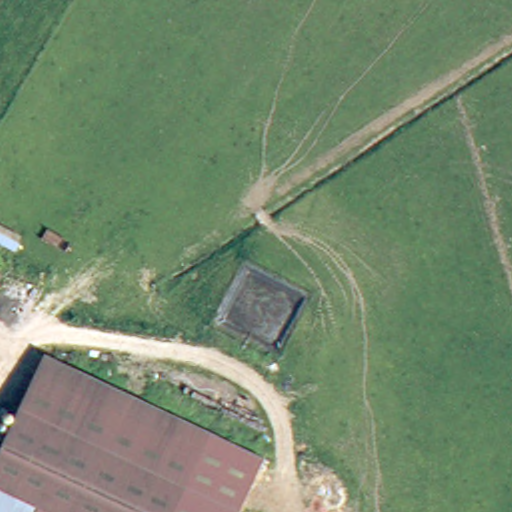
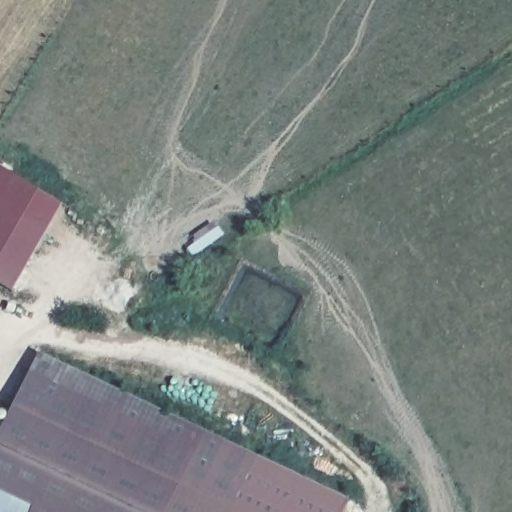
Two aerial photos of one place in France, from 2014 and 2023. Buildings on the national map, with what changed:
new [(0,167),(69,209),(17,293),(0,283),(0,167)]
unchanged [(12,411),(38,356),(256,461),(232,512),(223,512),(12,411)]
unchanged [(0,435),(12,411),(223,512),(42,512),(34,508),(32,512),(0,512),(0,435)]
new [(352,499),(346,512),(232,512),(256,461),(352,499)]
unchanged [(42,512),(32,512),(34,508),(42,512)]

